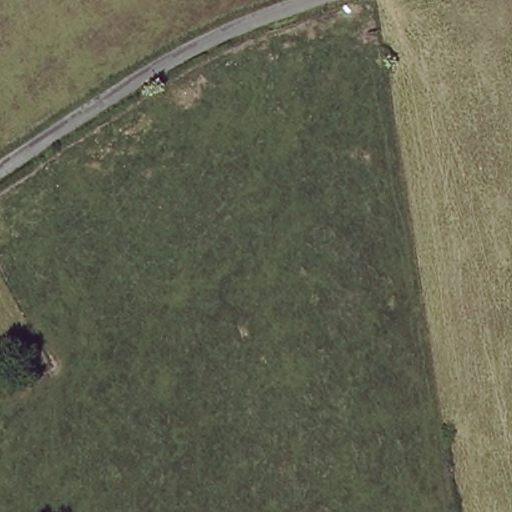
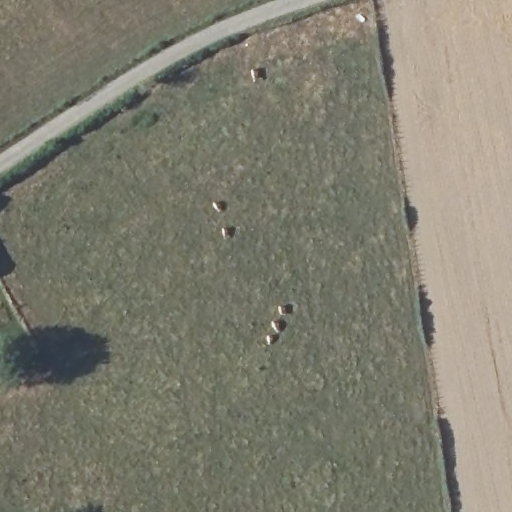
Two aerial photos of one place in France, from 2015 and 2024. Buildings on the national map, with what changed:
[]

